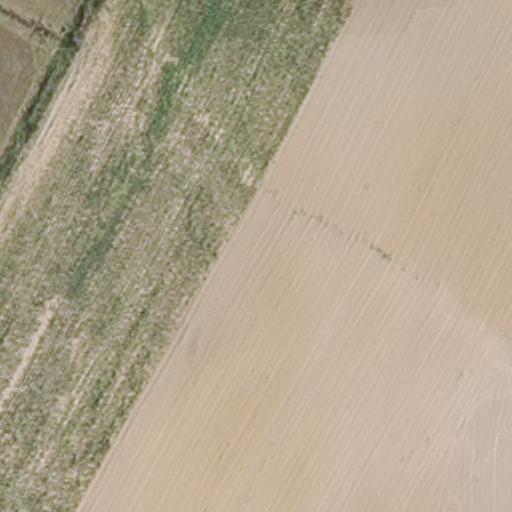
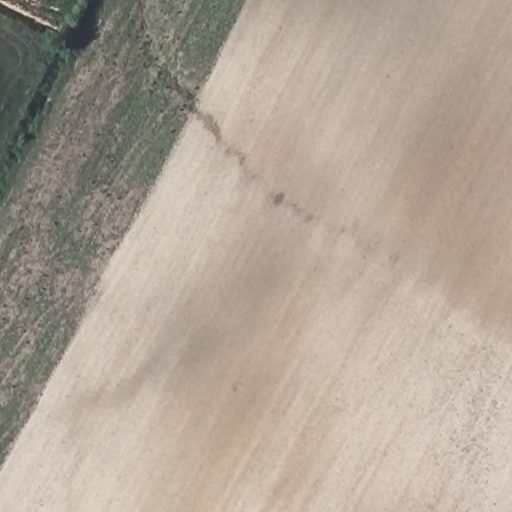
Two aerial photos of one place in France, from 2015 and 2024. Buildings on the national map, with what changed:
[]

